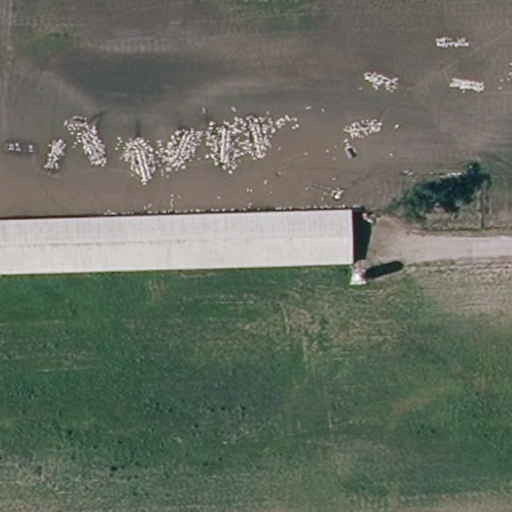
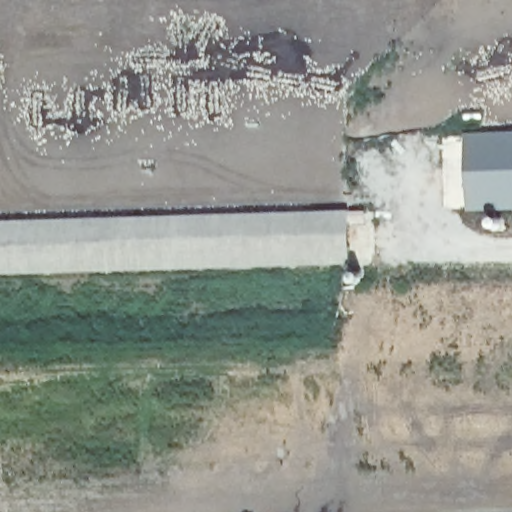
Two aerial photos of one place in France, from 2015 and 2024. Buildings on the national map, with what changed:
new [(461,133),(512,130),(512,211),(501,211),(464,211),(464,208),(461,136),(461,133)]
new [(461,136),(464,208),(442,208),(442,137),(461,136)]
unchanged [(352,261),(0,271),(0,220),(350,208),(352,261)]

